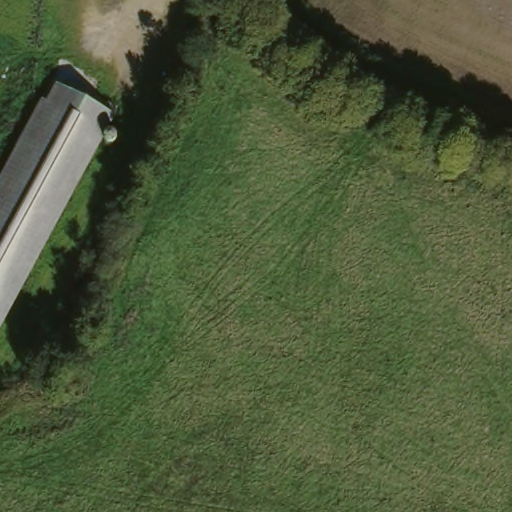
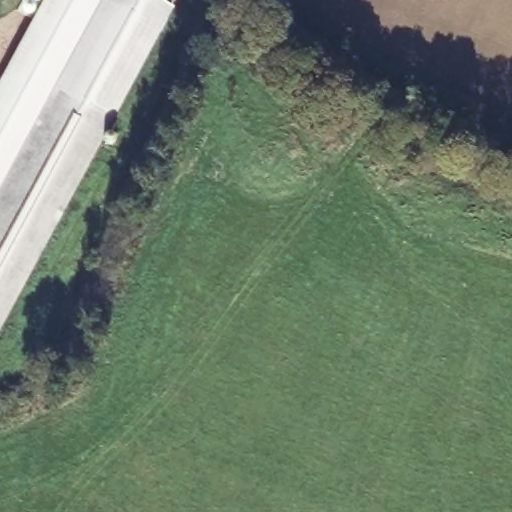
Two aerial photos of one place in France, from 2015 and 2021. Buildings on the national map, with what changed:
new [(42,0),(162,0),(170,5),(113,110),(54,79),(0,186),(0,78),(42,0)]
unchanged [(54,79),(113,110),(0,333),(0,186),(54,79)]

